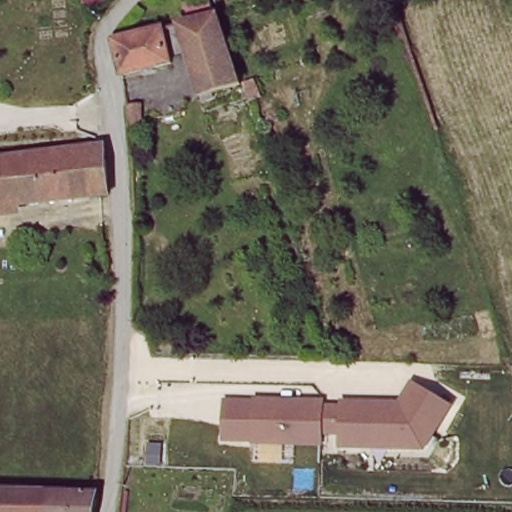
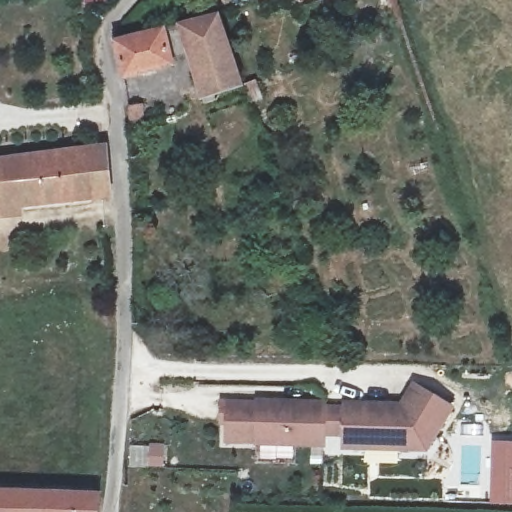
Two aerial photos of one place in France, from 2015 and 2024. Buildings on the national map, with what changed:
unchanged [(244,0),(263,0),(247,7),(244,0)]
unchanged [(200,99),(192,61),(117,74),(117,60),(122,31),(225,12),(245,89),(200,99)]
unchanged [(0,207),(0,163),(102,150),(105,198),(0,207)]
unchanged [(427,453),(339,452),(337,440),(326,440),(326,450),(223,445),(223,398),(327,399),(326,403),(341,403),(343,400),(400,401),(413,384),(453,408),(427,453)]
new [(490,440),(512,440),(512,503),(489,503),(490,440)]
unchanged [(0,489),(97,492),(94,512),(0,512),(0,489)]

